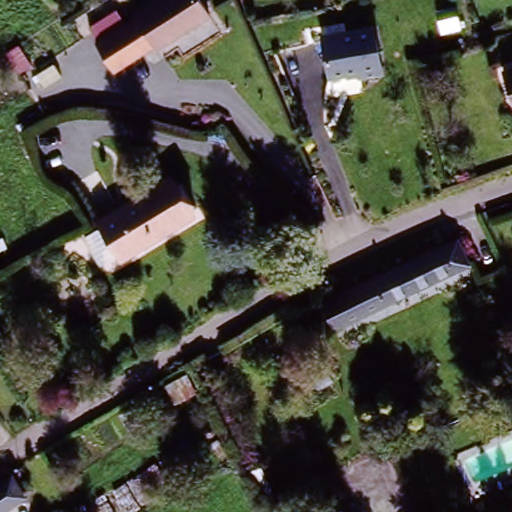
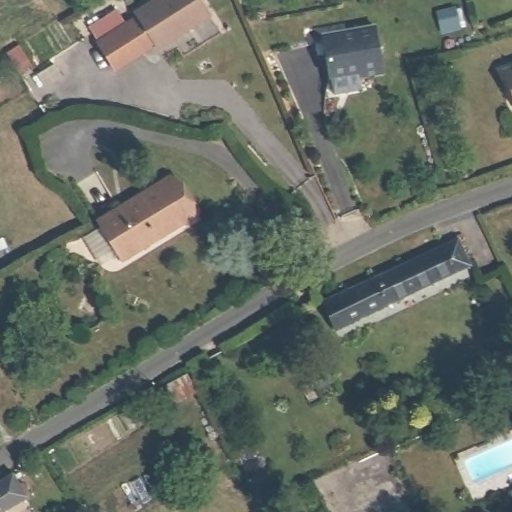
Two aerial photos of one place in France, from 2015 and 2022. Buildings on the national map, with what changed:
unchanged [(206,10),(156,45),(153,41),(114,68),(96,41),(135,14),(132,10),(146,0),(199,0),(206,10)]
unchanged [(380,29),(383,69),(326,74),(322,34),(380,29)]
unchanged [(501,67),(512,65),(512,100),(511,100),(508,91),(501,67)]
unchanged [(99,222),(76,187),(102,172),(122,208),(99,222)]
unchanged [(124,262),(111,248),(96,256),(82,232),(99,222),(122,208),(176,175),(199,216),(124,262)]
unchanged [(316,296),(459,234),(472,262),(459,267),(330,325),(316,296)]
unchanged [(483,329),(497,323),(512,355),(512,358),(500,364),(483,329)]
unchanged [(332,378),(344,404),(328,411),(317,384),(332,378)]
unchanged [(0,512),(0,481),(9,475),(22,498),(0,512)]

